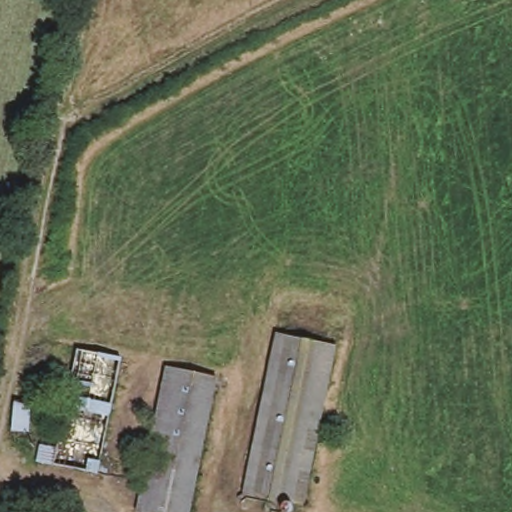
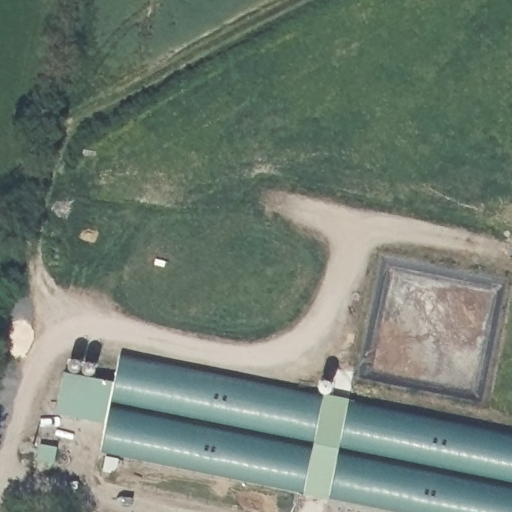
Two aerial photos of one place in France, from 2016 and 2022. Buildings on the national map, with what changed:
demolished [(322,344),(295,502),(251,496),(279,337),(322,344)]
demolished [(114,358),(95,474),(38,464),(41,450),(53,452),(70,351),(114,358)]
new [(71,363),(76,361),(93,365),(97,367),(97,372),(96,376),(116,382),(121,356),(351,400),(350,403),(512,433),(512,512),(410,512),(102,450),(108,424),(58,413),(65,372),(69,368),(71,363)]
demolished [(204,375),(181,512),(147,512),(135,510),(161,367),(204,375)]

